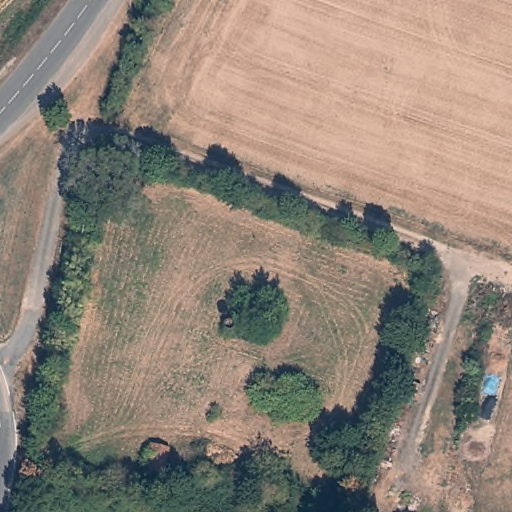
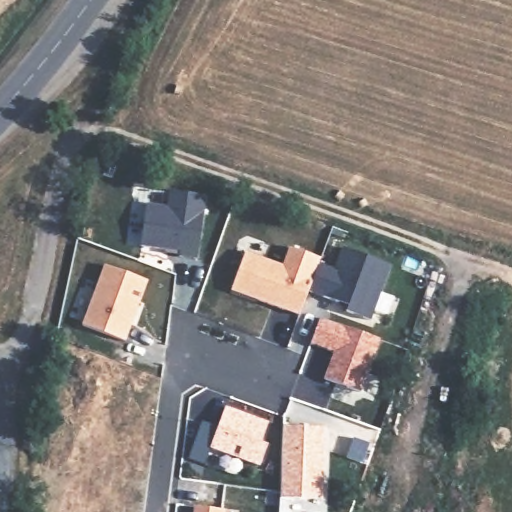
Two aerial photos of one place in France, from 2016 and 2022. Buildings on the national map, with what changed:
new [(179,256),(179,249),(141,244),(148,203),(169,206),(171,190),(208,194),(198,258),(179,256)]
new [(373,313),(307,289),(298,316),(232,292),(247,253),(283,266),(289,245),(319,256),(317,265),(334,271),(341,248),(392,266),(373,313)]
new [(81,325),(103,265),(148,282),(126,341),(81,325)]
new [(361,395),(325,380),(333,353),(310,344),(319,318),(381,341),(361,395)]
demolished [(231,346),(211,340),(220,319),(239,326),(231,346)]
demolished [(48,421),(31,417),(38,389),(54,394),(48,421)]
new [(209,449),(204,464),(188,458),(200,421),(219,426),(224,407),(268,423),(261,444),(267,446),(260,467),(209,449)]
new [(323,499),(281,498),(284,427),(326,427),(323,499)]
demolished [(164,483),(146,477),(155,444),(172,451),(164,483)]
new [(197,507),(224,510),(223,512),(196,512),(197,507)]

